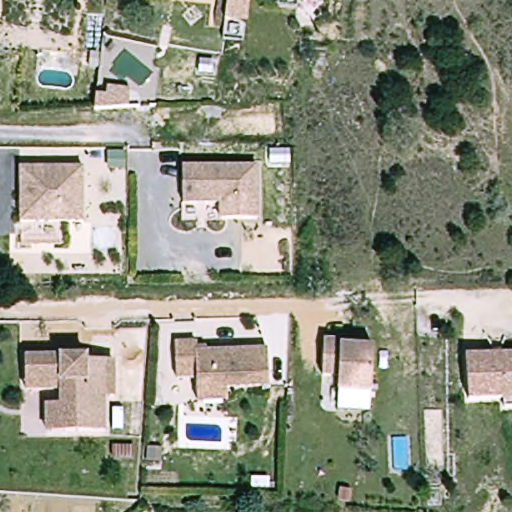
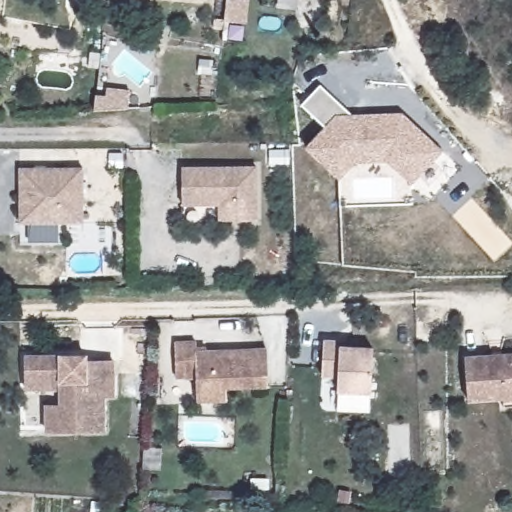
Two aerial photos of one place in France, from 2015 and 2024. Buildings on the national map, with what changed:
new [(225,0),(247,0),(245,24),(223,21),(225,0)]
new [(321,85),(352,115),(403,114),(443,151),(412,185),(389,162),(355,164),(339,180),(306,147),(326,126),(302,105),(321,85)]
new [(94,94),(105,95),(106,90),(129,90),(128,110),(93,111),(94,94)]
unchanged [(185,169),(259,169),(260,221),(223,221),(223,205),(185,206),(185,169)]
unchanged [(87,174),(87,229),(23,230),(23,175),(87,174)]
unchanged [(198,400),(197,387),(197,375),(177,375),(175,341),(196,340),(196,352),(266,348),(267,385),(225,386),(225,398),(198,400)]
unchanged [(382,394),(350,392),(351,377),(334,376),(336,342),(353,343),(371,344),(370,350),(384,351),(382,394)]
unchanged [(48,405),(62,404),(61,387),(28,387),(28,380),(28,356),(88,355),(88,361),(114,360),(115,396),(105,396),(105,431),(65,431),(48,431),(48,405)]
unchanged [(507,397),(472,399),(470,357),(512,355),(512,400),(507,400),(507,397)]

